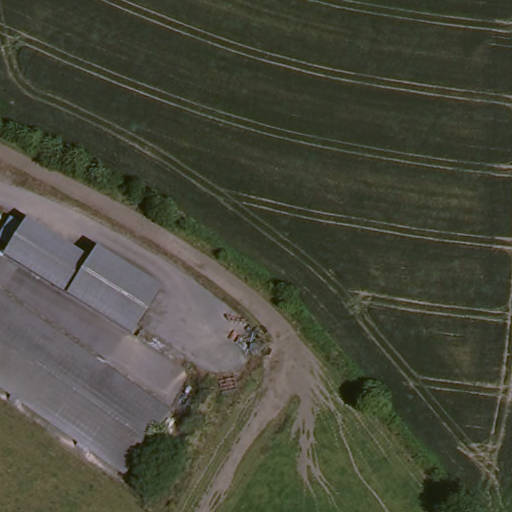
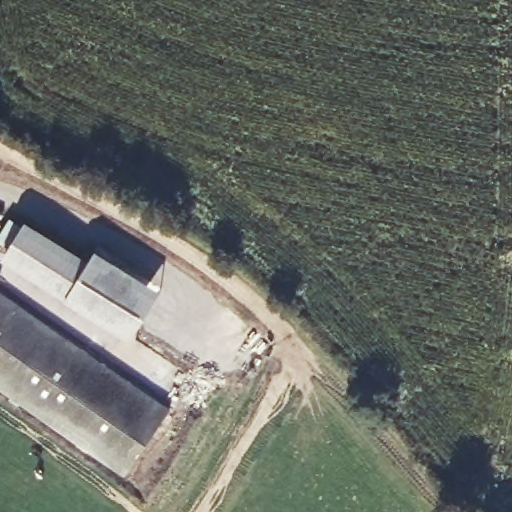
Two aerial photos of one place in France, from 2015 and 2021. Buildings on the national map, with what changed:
unchanged [(15,240),(3,232),(17,212),(91,263),(102,246),(165,289),(135,336),(9,250),(15,240)]
unchanged [(118,485),(0,394),(0,285),(169,415),(118,485)]

